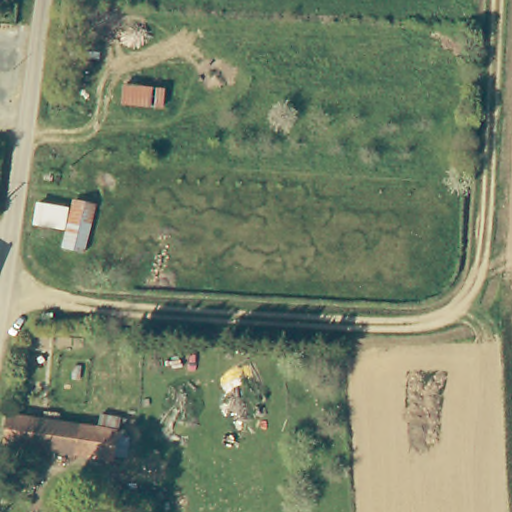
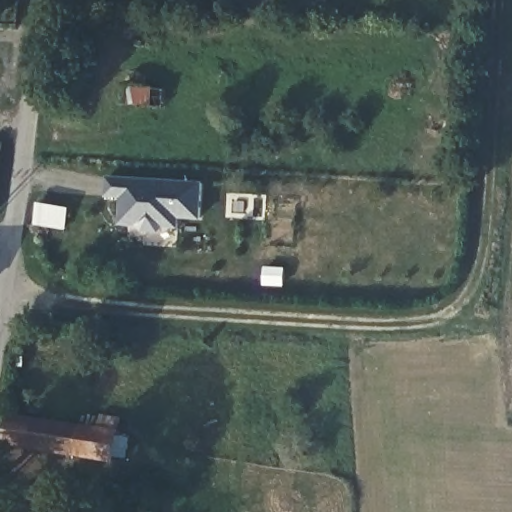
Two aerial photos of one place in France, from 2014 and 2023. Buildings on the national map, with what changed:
unchanged [(128,95),(130,80),(167,84),(165,99),(128,95)]
new [(204,221),(181,220),(180,230),(165,230),(162,232),(142,230),(139,225),(120,225),(120,198),(107,197),(108,176),(204,181),(204,221)]
unchanged [(35,225),(36,207),(64,210),(62,228),(35,225)]
unchanged [(77,425),(73,456),(3,446),(7,414),(77,425)]
unchanged [(115,432),(110,462),(73,456),(77,425),(115,432)]

